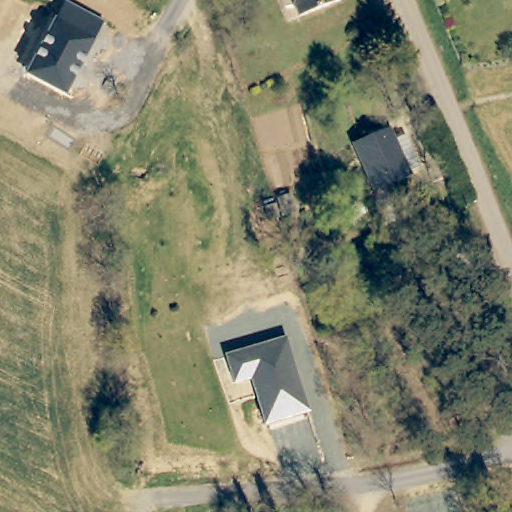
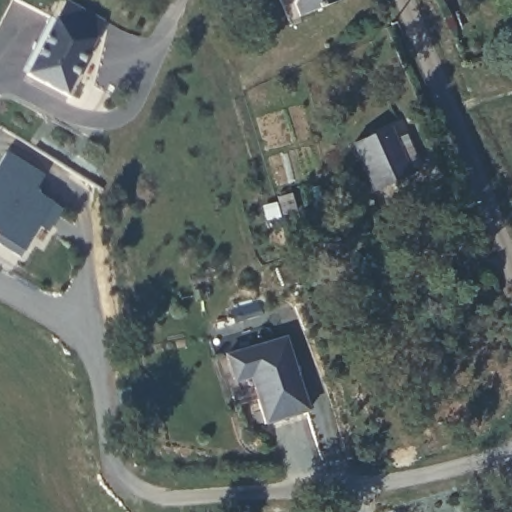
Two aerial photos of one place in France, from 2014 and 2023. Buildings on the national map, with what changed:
unchanged [(294,0),(340,0),(301,16),(294,0)]
unchanged [(25,73),(66,1),(105,21),(66,96),(25,73)]
unchanged [(371,193),(350,145),(387,130),(392,141),(402,137),(416,170),(407,174),(408,179),(371,193)]
new [(10,151),(47,175),(39,192),(57,202),(66,209),(51,233),(41,226),(26,252),(19,259),(0,247),(0,165),(10,151)]
unchanged [(265,427),(252,381),(234,386),(226,355),(286,337),(310,412),(265,427)]

